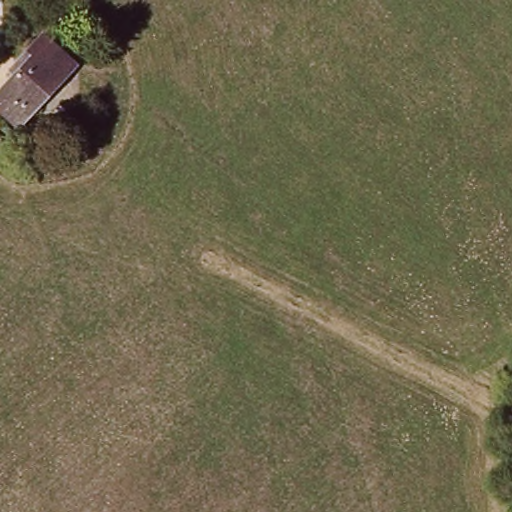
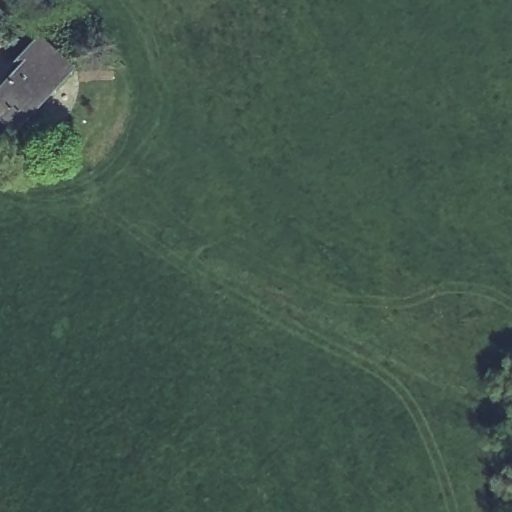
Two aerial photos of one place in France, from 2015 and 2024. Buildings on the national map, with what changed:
unchanged [(10,74),(47,41),(75,74),(11,129),(0,116),(0,91),(14,80),(10,74)]

